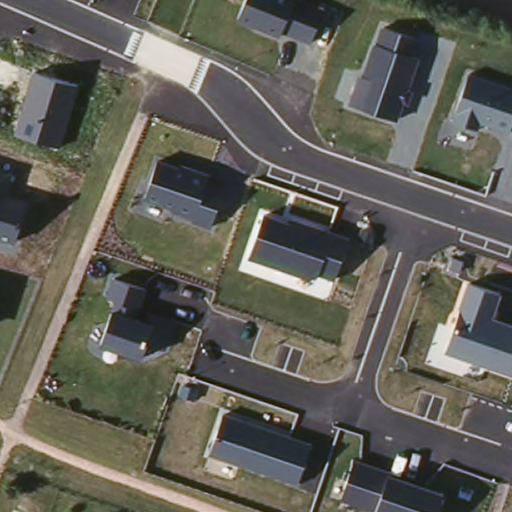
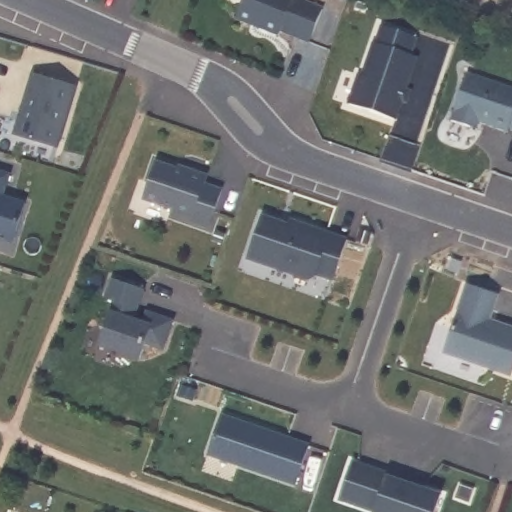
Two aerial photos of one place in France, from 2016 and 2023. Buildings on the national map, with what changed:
unchanged [(325,6),(313,43),(284,32),(282,37),(235,20),(244,0),(308,0),(325,6)]
unchanged [(356,74),(363,76),(379,24),(416,39),(411,56),(419,58),(397,120),(348,103),(356,74)]
unchanged [(79,84),(60,146),(16,133),(34,71),(79,84)]
unchanged [(512,86),(512,133),(482,122),(479,132),(449,122),(467,72),(512,86)]
unchanged [(182,167),(184,163),(212,172),(209,178),(229,184),(214,226),(173,214),(176,208),(142,197),(157,159),(182,167)]
unchanged [(9,195),(28,200),(15,243),(0,238),(0,167),(16,172),(9,195)]
unchanged [(338,278),(320,272),(317,281),(250,258),(265,214),(292,222),(294,217),(351,237),(338,278)]
unchanged [(149,288),(139,320),(154,325),(142,360),(98,346),(114,298),(105,295),(111,276),(149,288)]
unchanged [(503,293),(493,320),(512,325),(512,376),(444,354),(468,282),(503,293)]
unchanged [(298,485),(211,455),(225,412),(314,441),(298,485)]
unchanged [(373,512),(374,507),(342,497),(356,456),(395,469),(393,476),(444,493),(437,512),(373,512)]

